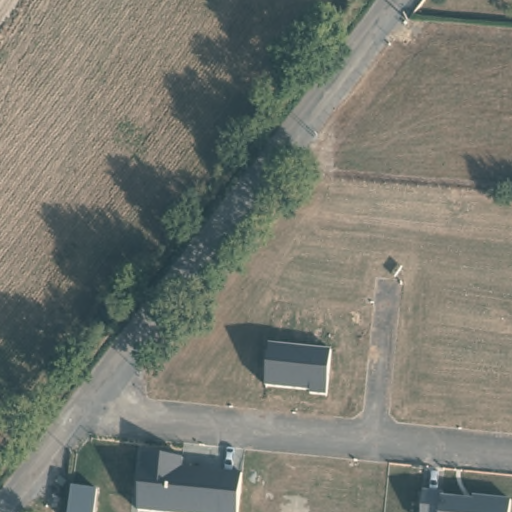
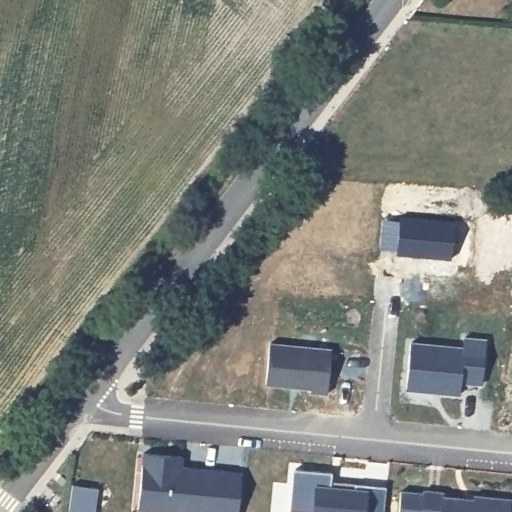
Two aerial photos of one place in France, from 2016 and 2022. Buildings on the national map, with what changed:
new [(407,343),(461,348),(461,338),(483,340),(480,385),(459,383),(458,395),(404,390),(407,343)]
unchanged [(312,392),(312,387),(266,383),(269,343),(329,346),(327,393),(312,392)]
unchanged [(144,454),(177,456),(175,471),(240,477),(237,512),(138,512),(144,454)]
new [(329,473),(329,482),(385,487),(383,512),(302,512),(288,510),(292,470),(329,473)]
unchanged [(95,512),(67,512),(71,483),(98,488),(95,512)]
unchanged [(508,512),(399,512),(401,490),(509,498),(508,512)]

